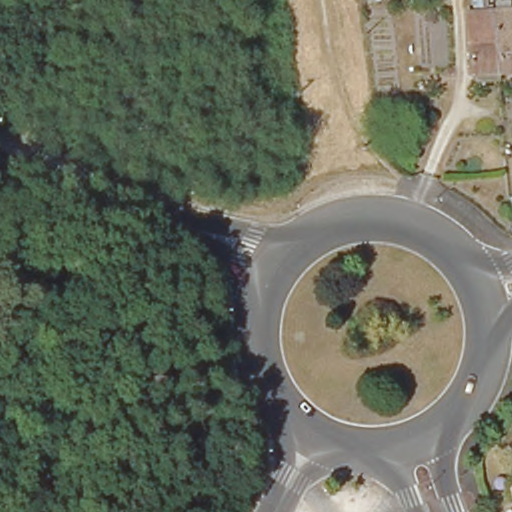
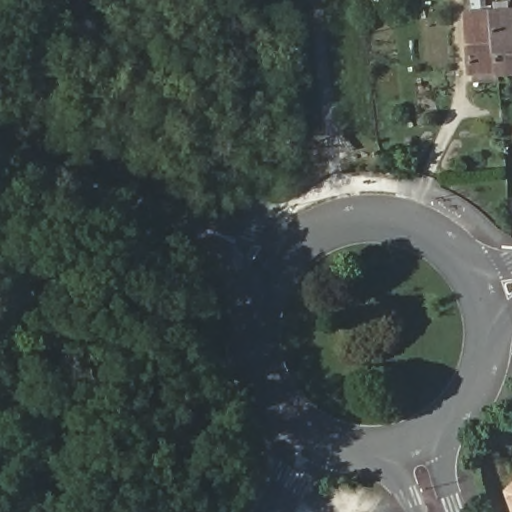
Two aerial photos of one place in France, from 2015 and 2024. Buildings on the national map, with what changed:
unchanged [(512,10),(512,70),(471,72),(466,12),(512,10)]
unchanged [(512,482),(512,500),(507,488),(512,482)]

